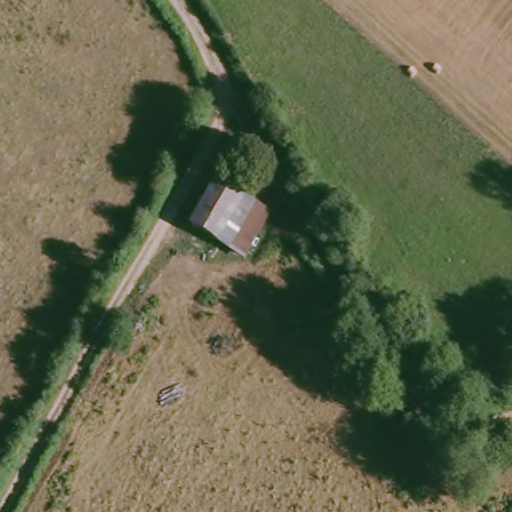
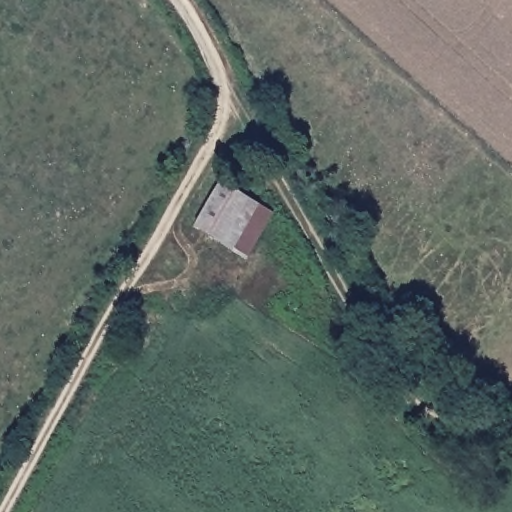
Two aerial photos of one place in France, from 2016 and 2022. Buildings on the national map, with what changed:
unchanged [(262,220),(240,260),(187,231),(209,190),(262,220)]

